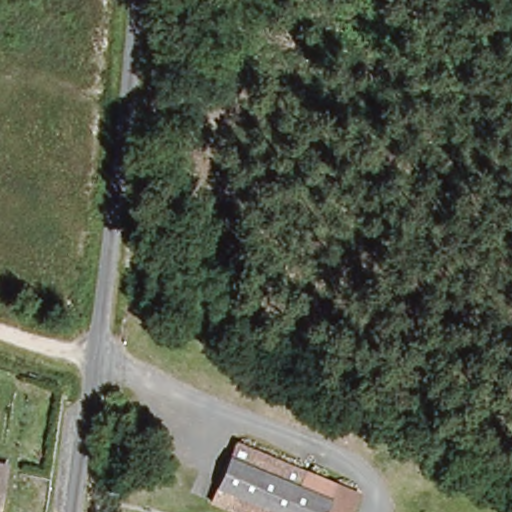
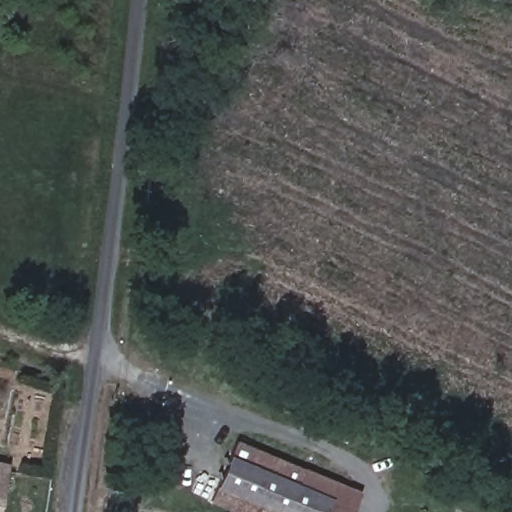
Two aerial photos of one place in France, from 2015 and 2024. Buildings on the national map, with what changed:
unchanged [(243,512),(210,496),(239,438),(360,498),(353,512),(346,512),(331,504),(327,512),(243,512)]
unchanged [(11,465),(7,488),(4,512),(0,512),(0,463),(11,465)]
unchanged [(346,512),(327,512),(331,504),(346,512)]

